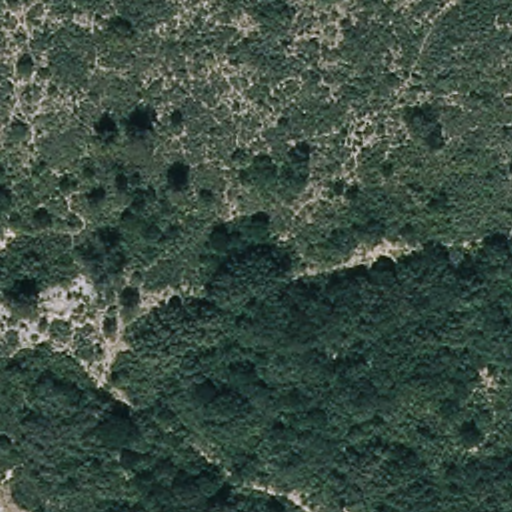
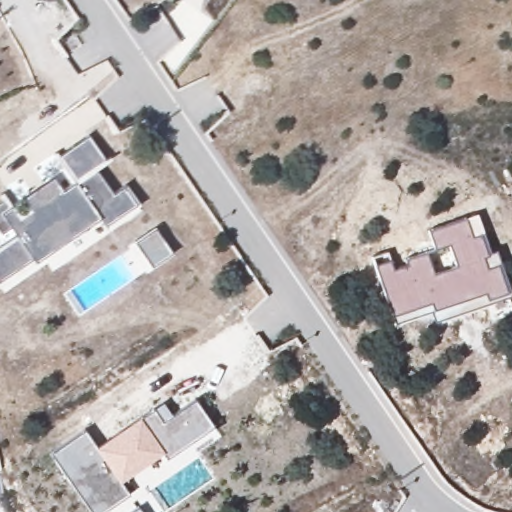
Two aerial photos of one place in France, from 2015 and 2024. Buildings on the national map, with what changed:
new [(106,161),(96,167),(113,192),(125,184),(140,205),(105,228),(99,219),(0,288),(0,248),(15,236),(10,228),(0,235),(0,201),(5,198),(10,206),(52,176),(62,190),(75,182),(56,157),(87,135),(106,161)]
new [(375,265),(390,260),(392,268),(407,264),(405,256),(425,249),(433,272),(456,265),(448,242),(434,247),(427,227),(477,211),(490,251),(496,249),(510,293),(435,319),(431,310),(395,322),(375,265)]
new [(99,512),(92,512),(50,451),(83,428),(95,444),(161,399),(171,413),(194,397),(213,424),(166,457),(162,450),(120,480),(128,492),(99,512)]

